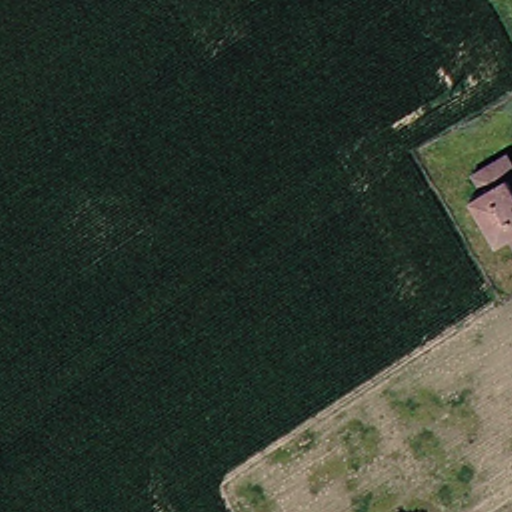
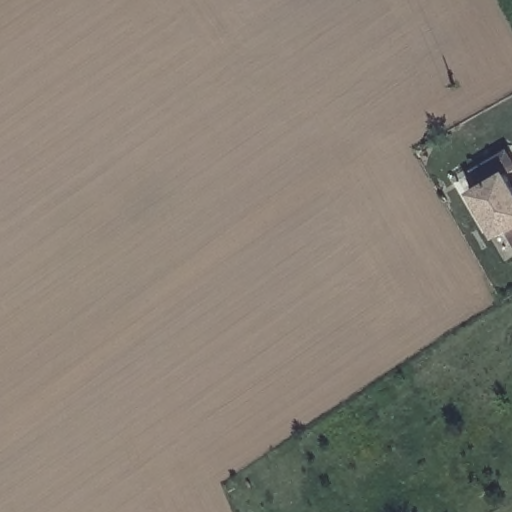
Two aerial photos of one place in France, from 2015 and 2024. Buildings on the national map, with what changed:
unchanged [(510,167),(502,171),(512,188),(512,243),(510,244),(501,229),(491,235),(464,192),(475,185),(466,170),(499,149),(510,167)]

